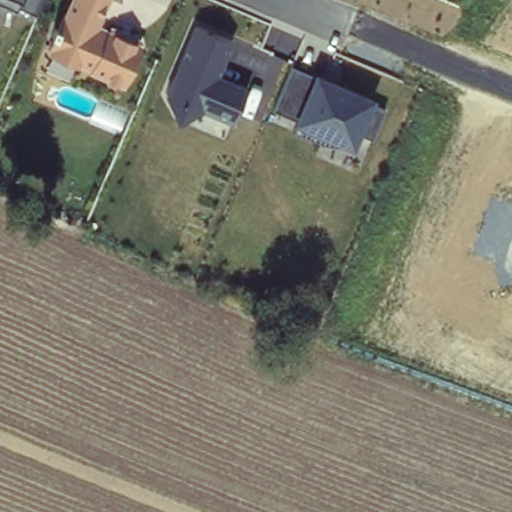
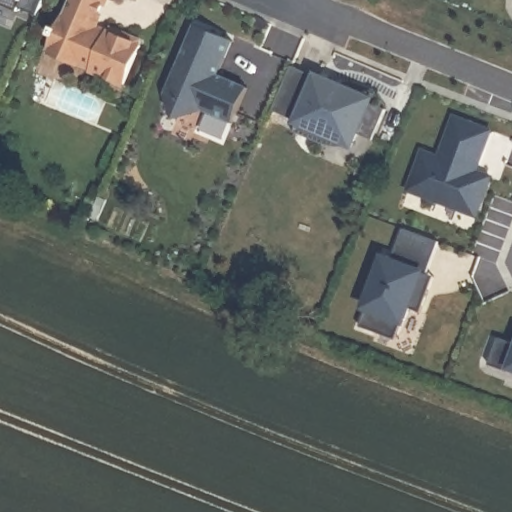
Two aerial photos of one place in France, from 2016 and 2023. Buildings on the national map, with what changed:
unchanged [(34,12),(18,5),(16,8),(0,1),(0,0),(40,0),(34,12)]
unchanged [(50,41),(67,0),(110,0),(99,27),(107,30),(109,27),(143,39),(124,82),(51,48),(50,41)]
unchanged [(233,122),(202,110),(175,125),(165,93),(193,23),(234,41),(220,73),(247,84),(233,122)]
unchanged [(292,68),(313,77),(315,72),(373,97),(371,104),(384,109),(373,137),(360,131),(355,145),(343,141),(340,144),(323,142),(294,129),(298,122),(293,120),(295,117),(272,107),(292,68)]
new [(422,151),(438,157),(454,116),(490,130),(478,162),(474,160),(471,169),(490,176),(476,214),(436,198),(435,200),(407,189),(422,151)]
new [(366,307),(364,307),(383,257),(390,259),(402,227),(438,241),(426,274),(426,273),(433,275),(427,290),(420,311),(408,307),(403,321),(401,320),(395,338),(359,325),(366,307)]
new [(499,338),(512,342),(512,370),(508,368),(507,371),(489,365),(499,338)]

